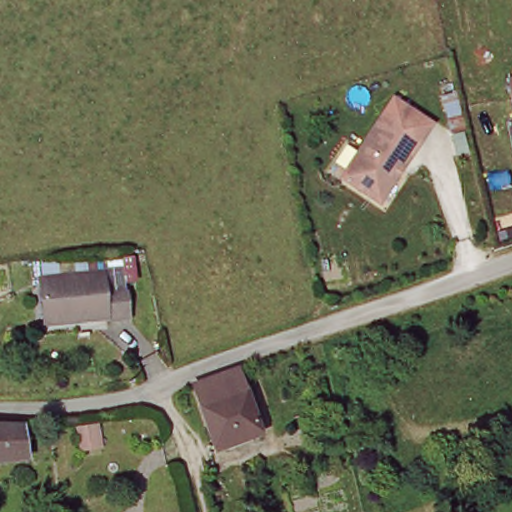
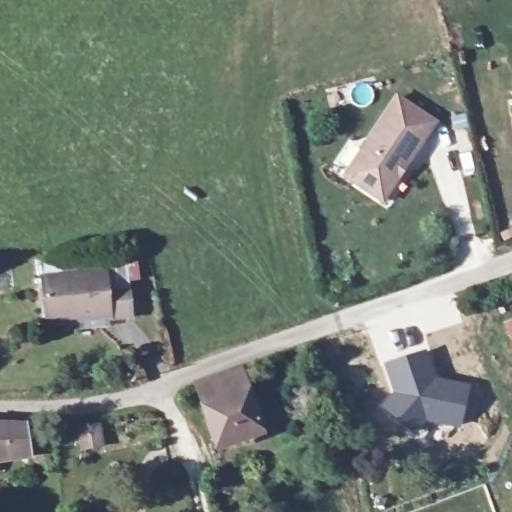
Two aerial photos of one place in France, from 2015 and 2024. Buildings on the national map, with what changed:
unchanged [(400,98),(437,122),(407,168),(403,166),(400,172),(403,174),(387,201),(350,177),(400,98)]
unchanged [(104,313),(104,308),(42,315),(38,270),(98,262),(101,283),(125,280),(128,308),(104,313)]
new [(512,318),(512,350),(500,323),(512,318)]
new [(390,392),(382,362),(429,349),(437,376),(470,383),(460,429),(427,423),(401,424),(388,418),(377,409),(390,392)]
unchanged [(264,437),(205,456),(183,389),(242,370),(264,437)]
unchanged [(105,439),(82,441),(79,421),(85,421),(102,420),(105,439)]
unchanged [(0,460),(0,423),(19,422),(19,456),(0,460)]

